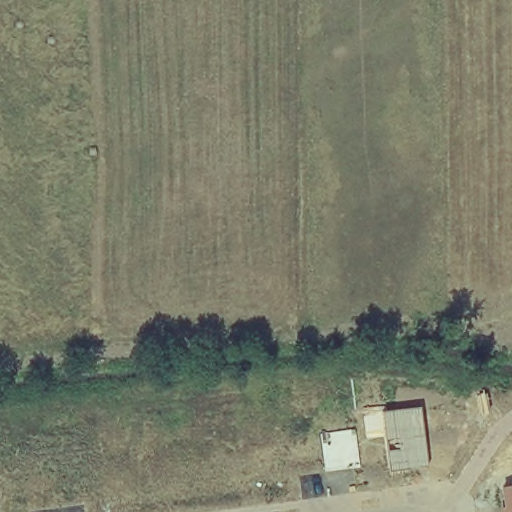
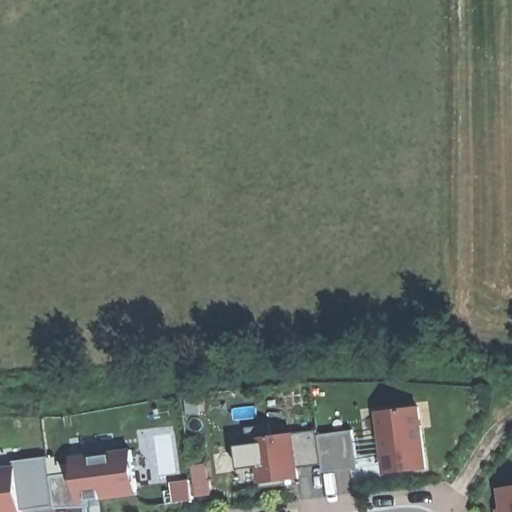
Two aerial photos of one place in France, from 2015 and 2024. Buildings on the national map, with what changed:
unchanged [(421,408),(428,466),(390,471),(388,450),(399,448),(397,438),(386,438),(383,412),(421,408)]
new [(299,467),(300,477),(289,479),(290,483),(263,487),(257,441),(250,442),(248,426),(272,423),(274,435),(319,428),(324,463),(299,467)]
unchanged [(321,433),(356,430),(360,467),(326,471),(321,433)]
new [(52,475),(75,474),(73,455),(93,452),(94,457),(112,455),(112,450),(134,449),(139,495),(104,500),(104,496),(90,498),(92,505),(56,505),(52,475)]
new [(23,510),(24,512),(0,512),(0,469),(16,466),(15,460),(49,455),(56,505),(23,510)]
unchanged [(504,505),(502,486),(512,485),(512,512),(499,512),(499,510),(504,505)]

